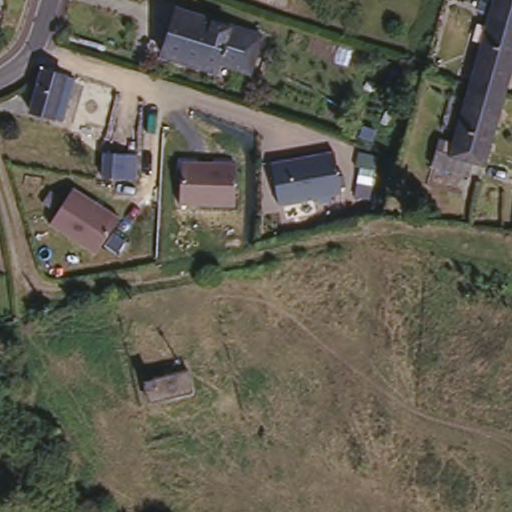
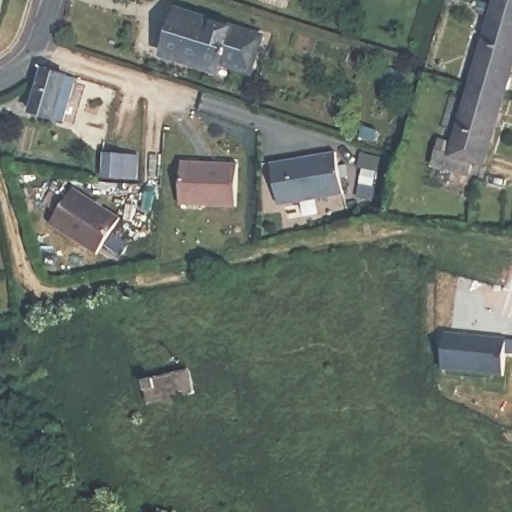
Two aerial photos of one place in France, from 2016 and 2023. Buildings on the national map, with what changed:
unchanged [(498,0),(512,0),(512,9),(496,5),(498,0)]
unchanged [(259,31),(247,66),(210,55),(208,64),(161,48),(176,4),(259,31)]
unchanged [(512,9),(512,68),(504,95),(473,86),(496,5),(512,9)]
unchanged [(60,119),(54,117),(30,112),(41,69),(44,70),(64,75),(70,77),(60,119)]
unchanged [(504,95),(483,166),(473,162),(468,177),(432,166),(439,142),(455,147),(473,86),(504,95)]
unchanged [(269,162),(334,150),(342,193),(279,205),(269,162)]
unchanged [(138,156),(136,181),(101,178),(105,152),(138,156)]
unchanged [(181,161),(236,164),(235,207),(179,206),(181,161)]
unchanged [(49,226),(74,187),(121,219),(97,255),(49,226)]
new [(505,340),(503,377),(445,372),(447,336),(505,340)]
unchanged [(191,372),(196,395),(153,405),(148,381),(191,372)]

